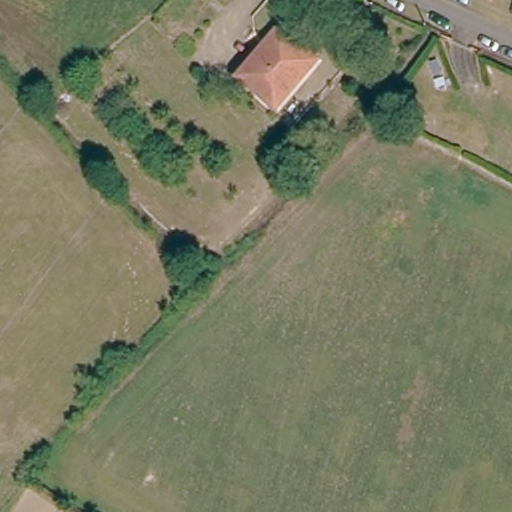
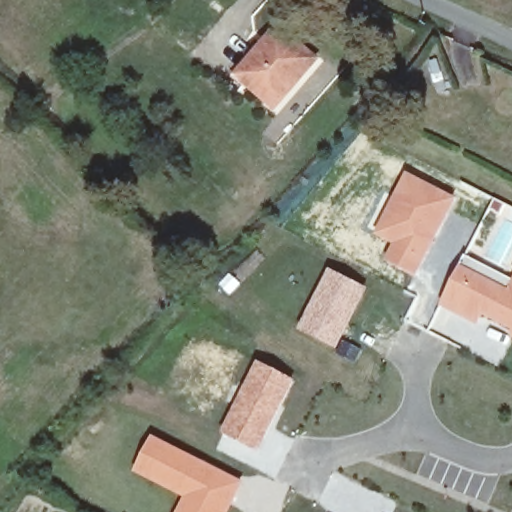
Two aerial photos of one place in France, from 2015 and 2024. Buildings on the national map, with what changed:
unchanged [(268,108),(235,74),(276,26),(299,47),(310,57),(280,93),(268,108)]
new [(407,173),(456,198),(439,234),(415,278),(380,261),(388,245),(376,239),(407,173)]
new [(511,278),(512,277),(512,339),(480,319),(476,328),(438,309),(466,255),(511,278)]
new [(328,269),(368,289),(342,340),(361,350),(354,364),(338,352),(297,331),(328,269)]
new [(257,360),(296,381),(251,467),(213,448),(257,360)]
new [(244,483),(229,512),(175,512),(182,499),(133,473),(153,436),(244,483)]

